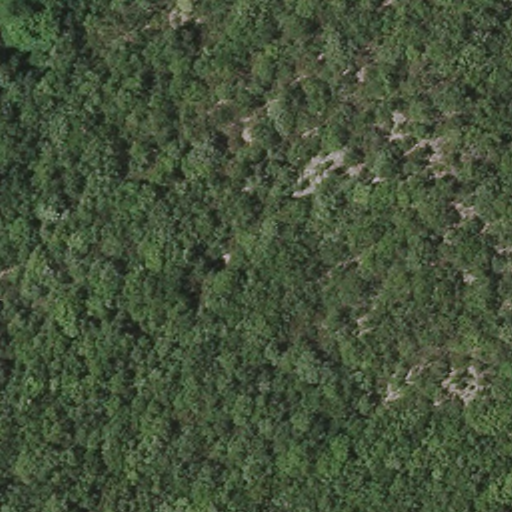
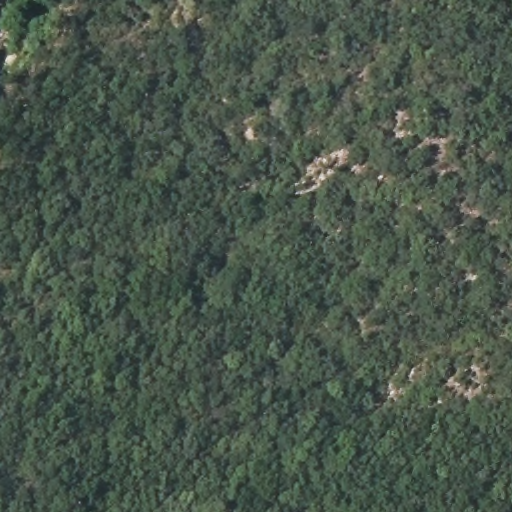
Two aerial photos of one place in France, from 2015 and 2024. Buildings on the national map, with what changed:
[]

